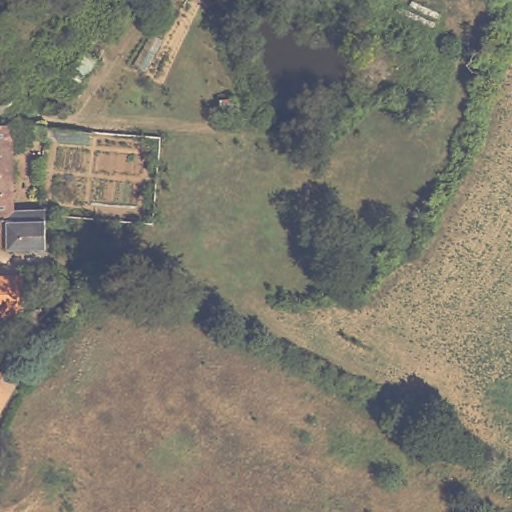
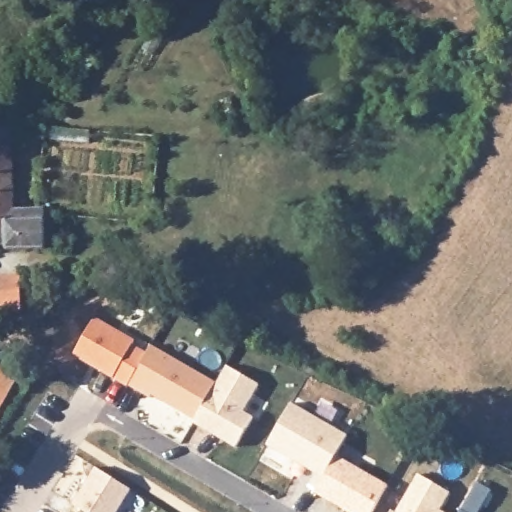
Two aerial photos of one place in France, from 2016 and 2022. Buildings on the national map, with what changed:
unchanged [(81,89),(69,81),(86,55),(100,62),(81,89)]
unchanged [(46,246),(11,245),(10,239),(0,239),(0,121),(14,121),(18,196),(46,207),(46,246)]
unchanged [(47,140),(34,140),(34,129),(47,129),(47,140)]
unchanged [(90,147),(59,144),(60,131),(91,134),(90,147)]
new [(92,319),(132,342),(130,346),(145,354),(127,385),(71,354),(92,319)]
new [(145,354),(150,345),(216,383),(195,420),(144,391),(142,394),(127,385),(145,354)]
unchanged [(0,414),(0,366),(20,377),(0,414)]
new [(195,420),(216,383),(226,366),(259,385),(243,412),(253,417),(236,447),(193,423),(195,420)]
new [(268,446),(292,402),(348,435),(337,455),(389,485),(374,512),(348,512),(316,493),(324,477),(268,446)]
new [(129,491),(116,512),(81,512),(71,506),(94,469),(129,491)]
new [(411,478),(414,472),(452,494),(442,511),(443,512),(396,512),(415,480),(411,478)]
new [(465,512),(460,512),(462,510),(465,512)]
new [(393,512),(391,512),(392,511),(393,512)]

